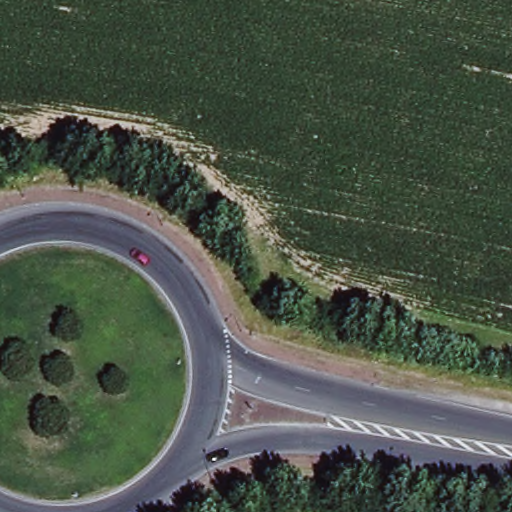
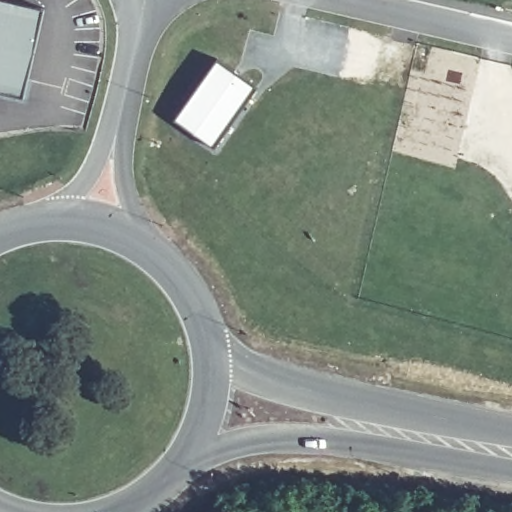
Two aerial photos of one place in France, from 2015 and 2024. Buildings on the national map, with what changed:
new [(26,99),(0,93),(0,0),(12,0),(46,7),(26,99)]
new [(213,148),(173,120),(216,60),(254,87),(213,148)]

